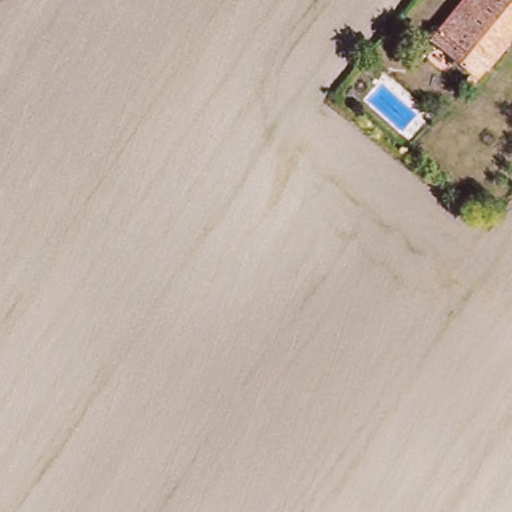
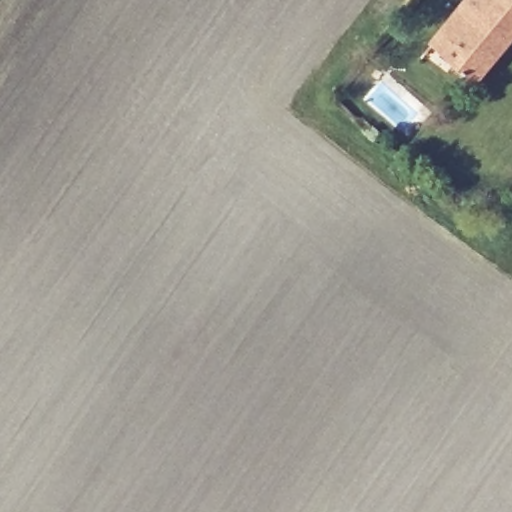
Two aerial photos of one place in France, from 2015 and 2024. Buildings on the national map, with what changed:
unchanged [(427,45),(464,0),(512,0),(512,36),(474,83),(427,45)]

